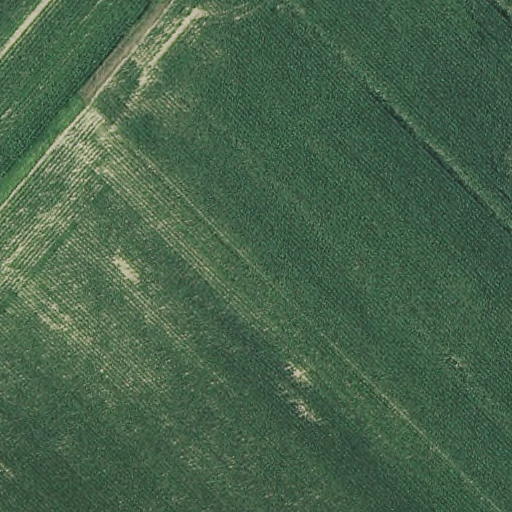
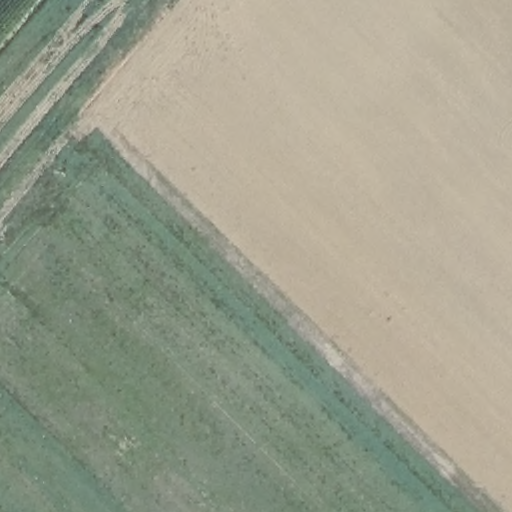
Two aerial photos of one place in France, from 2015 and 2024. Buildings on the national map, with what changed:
[]

